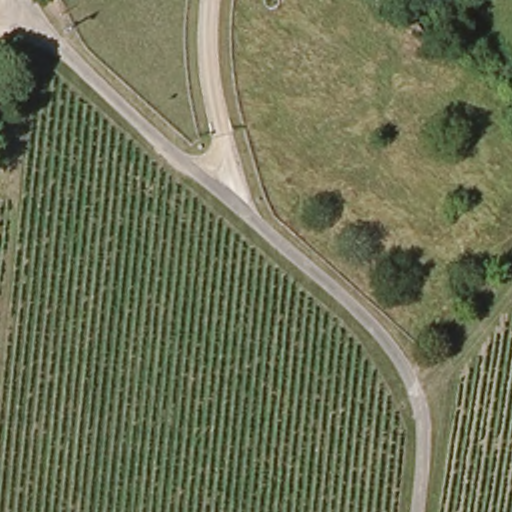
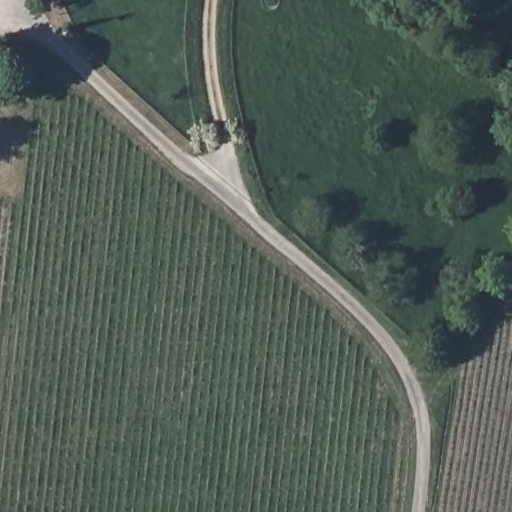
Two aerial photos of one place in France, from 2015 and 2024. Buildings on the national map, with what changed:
[]

